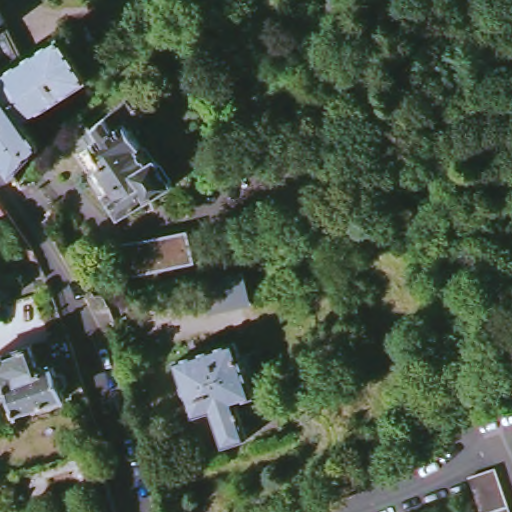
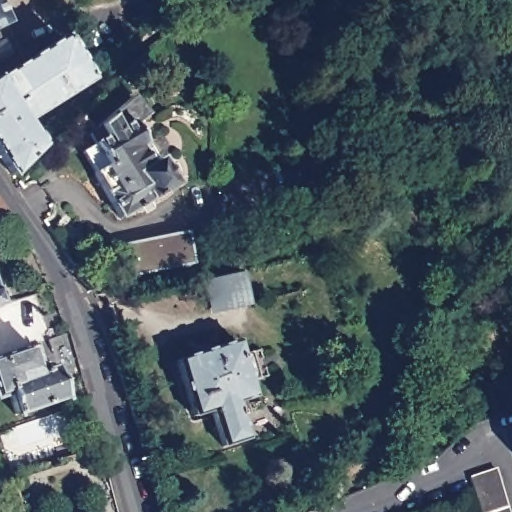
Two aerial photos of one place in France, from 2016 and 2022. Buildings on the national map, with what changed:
unchanged [(25,57),(0,74),(0,6),(25,57)]
unchanged [(0,148),(0,74),(25,57),(62,34),(89,77),(25,119),(42,143),(15,170),(0,148)]
unchanged [(93,149),(88,140),(130,102),(145,119),(130,128),(140,146),(135,149),(147,165),(155,159),(173,190),(120,222),(94,178),(81,156),(93,149)]
unchanged [(7,212),(0,214),(0,201),(7,212)]
unchanged [(125,244),(188,230),(195,263),(132,276),(125,244)]
unchanged [(203,278),(242,270),(253,302),(210,314),(203,278)]
unchanged [(10,301),(0,305),(0,273),(10,301)]
unchanged [(77,364),(59,369),(62,372),(64,373),(65,375),(65,379),(65,382),(64,384),(62,386),(60,387),(63,395),(13,410),(6,391),(0,392),(0,351),(30,342),(39,367),(52,363),(45,337),(67,331),(77,364)]
unchanged [(211,410),(193,415),(175,360),(236,342),(241,353),(260,349),(267,377),(250,383),(254,397),(237,402),(248,439),(223,446),(211,410)]
unchanged [(468,471),(495,462),(512,511),(512,512),(483,512),(474,485),(468,471)]
unchanged [(117,512),(77,512),(79,503),(111,495),(117,512)]

